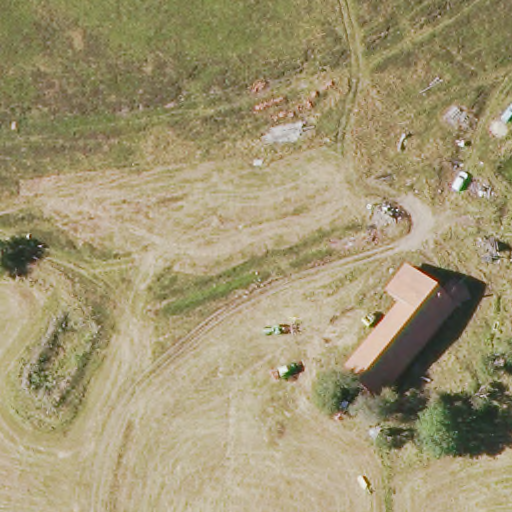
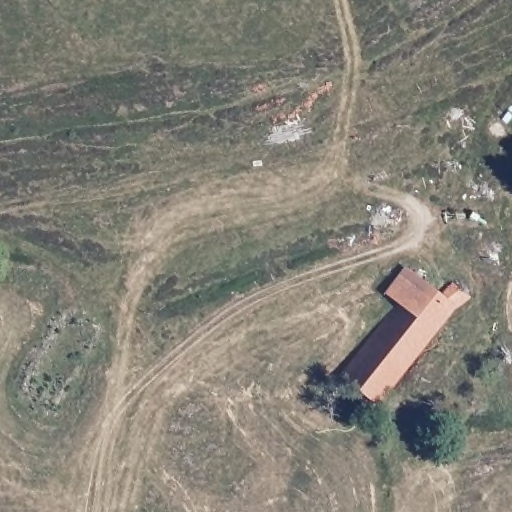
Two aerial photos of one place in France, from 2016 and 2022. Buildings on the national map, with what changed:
unchanged [(337,356),(407,294),(397,280),(414,267),(457,316),(371,396),(337,356)]

